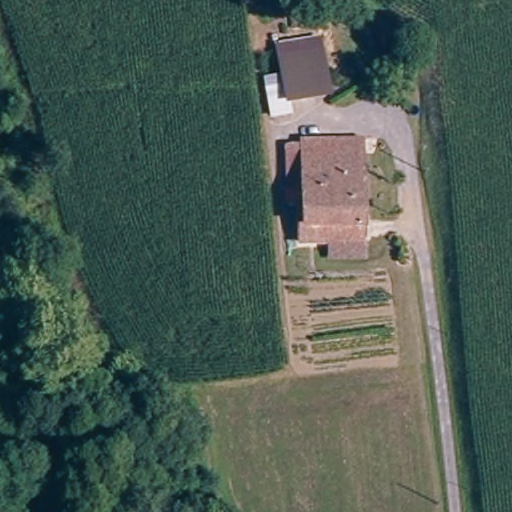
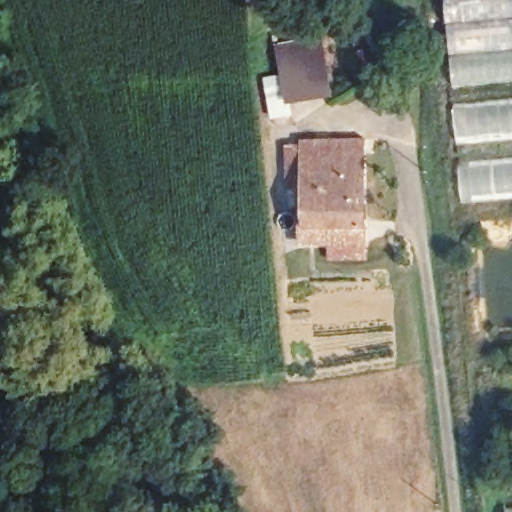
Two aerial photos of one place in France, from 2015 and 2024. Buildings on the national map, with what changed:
new [(512,0),(512,52),(452,58),(444,0),(512,0)]
new [(452,58),(512,52),(512,86),(454,91),(452,58)]
unchanged [(287,74),(289,60),(321,59),(323,69),(332,114),(270,118),(267,79),(287,74)]
new [(455,106),(512,101),(512,141),(458,146),(455,106)]
unchanged [(361,258),(332,258),(332,246),(332,241),(302,241),(296,242),(296,227),(303,227),(303,141),(362,140),(363,226),(360,226),(361,240),(361,247),(361,258)]
new [(460,166),(512,161),(512,203),(464,208),(460,166)]

